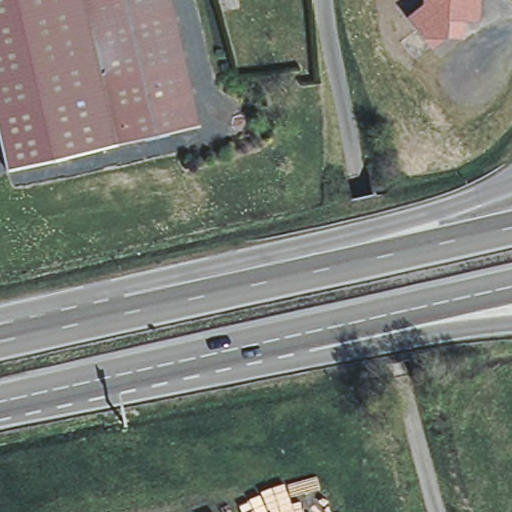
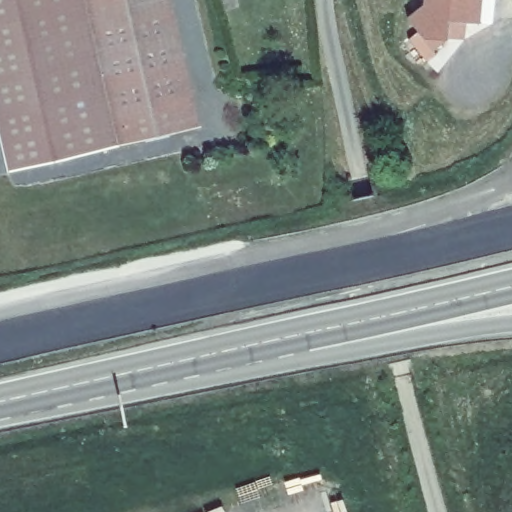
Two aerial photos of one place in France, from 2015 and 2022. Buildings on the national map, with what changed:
unchanged [(84,0),(117,146),(81,154),(6,152),(0,124),(0,0),(84,0)]
unchanged [(117,146),(84,0),(174,0),(203,126),(117,146)]
unchanged [(464,17),(463,34),(446,31),(432,43),(406,13),(421,0),(480,0),(479,18),(464,17)]

